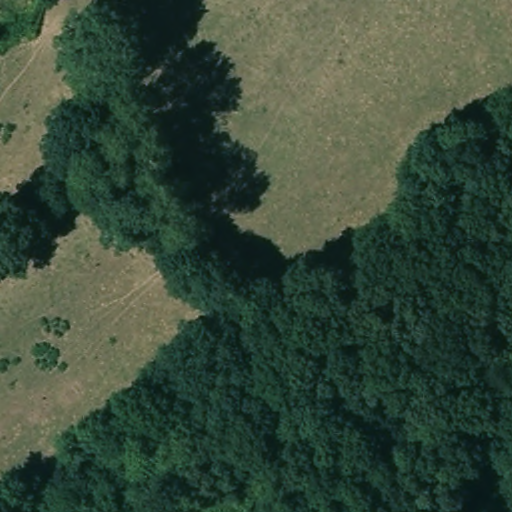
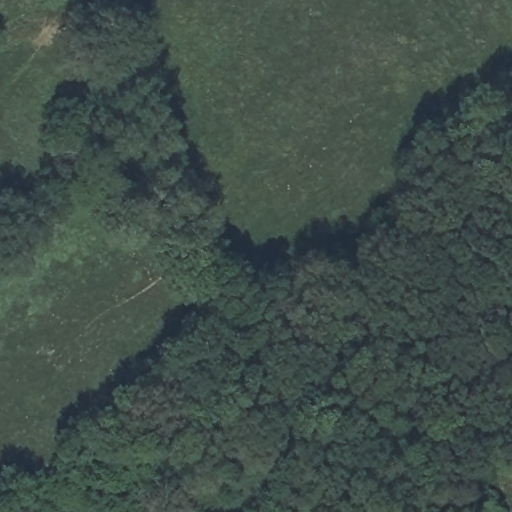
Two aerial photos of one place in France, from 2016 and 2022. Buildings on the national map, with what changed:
[]

